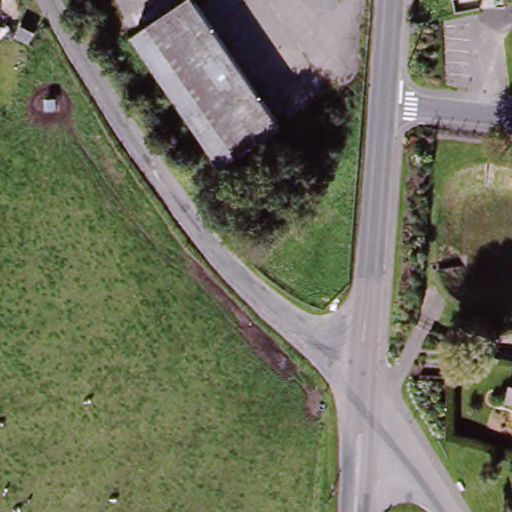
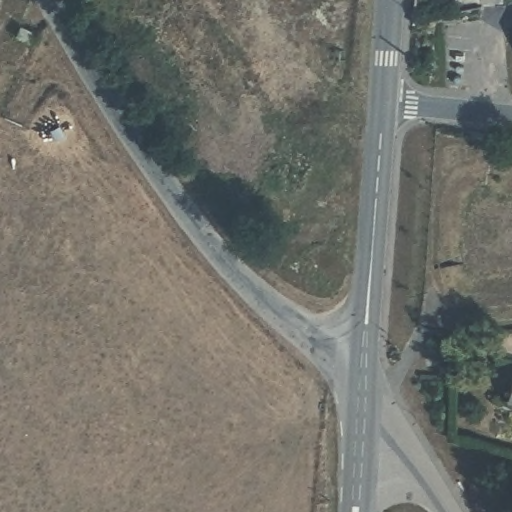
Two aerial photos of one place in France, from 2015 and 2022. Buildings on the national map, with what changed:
demolished [(195,0),(280,125),(222,165),(134,35),(185,0),(195,0)]
unchanged [(422,367),(440,366),(440,375),(422,373),(422,367)]
unchanged [(512,382),(512,392),(510,391),(512,382)]

